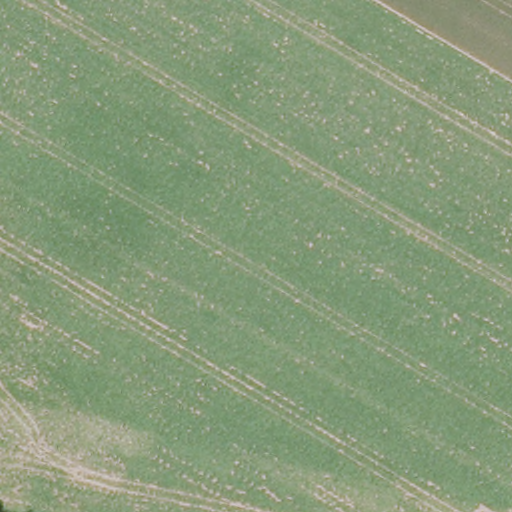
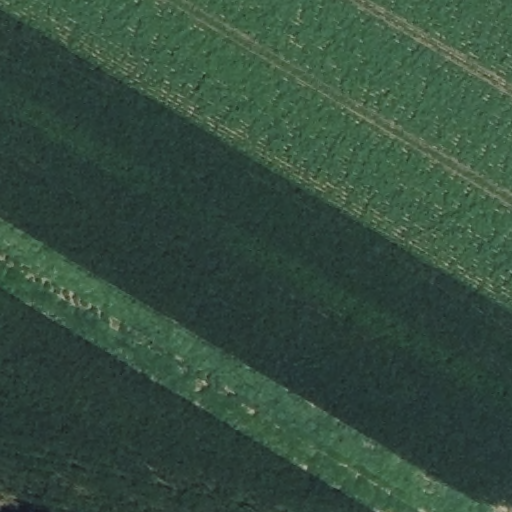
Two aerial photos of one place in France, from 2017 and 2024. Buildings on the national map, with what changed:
[]

